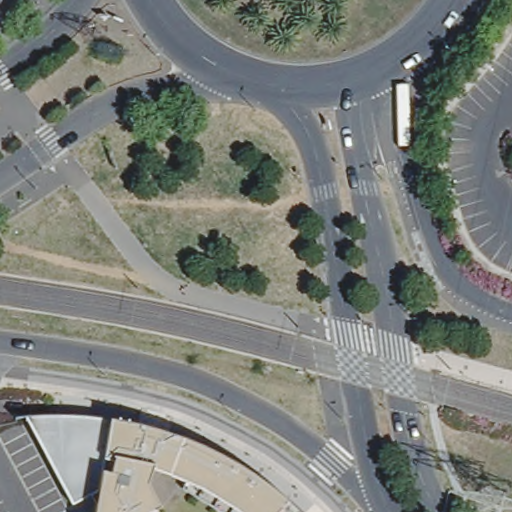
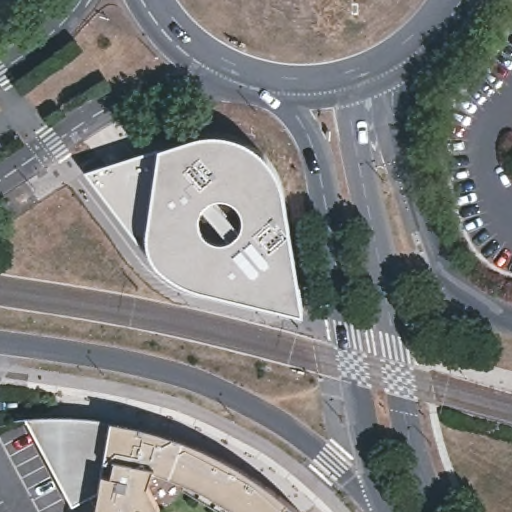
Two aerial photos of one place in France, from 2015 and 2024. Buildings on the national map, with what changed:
new [(145,254),(90,173),(205,135),(222,136),(235,140),(247,144),(262,153),(268,161),(276,176),(286,221),(300,310),(194,286),(166,270),(148,255),(145,254)]
unchanged [(76,505),(26,417),(69,413),(101,415),(113,420),(147,428),(173,436),(201,444),(235,458),(264,477),(291,497),(277,512),(241,512),(211,493),(171,474),(151,468),(146,486),(159,512),(79,512),(76,505)]

